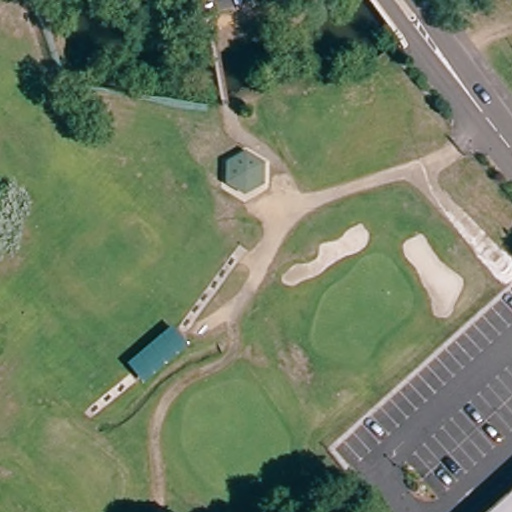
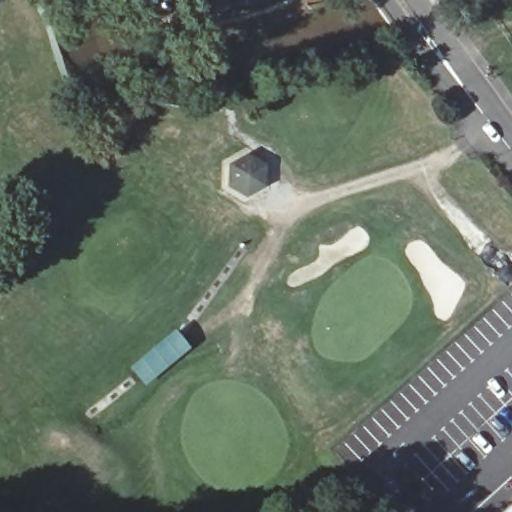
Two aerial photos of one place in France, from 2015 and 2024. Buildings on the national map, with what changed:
unchanged [(222,185),(224,162),(244,152),(263,165),(261,187),(240,197),(222,185)]
unchanged [(171,326),(191,350),(146,387),(126,364),(171,326)]
unchanged [(512,511),(512,512),(511,512),(512,511)]

